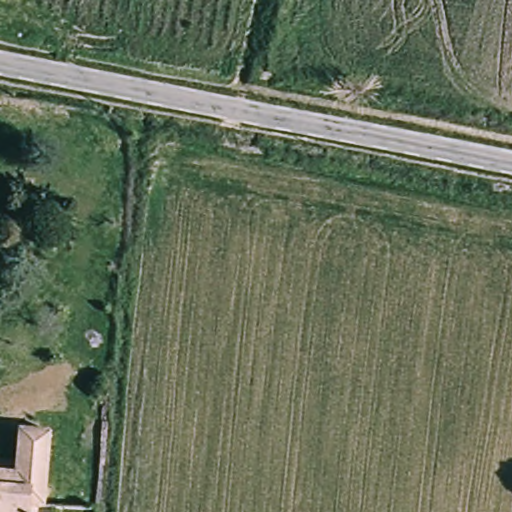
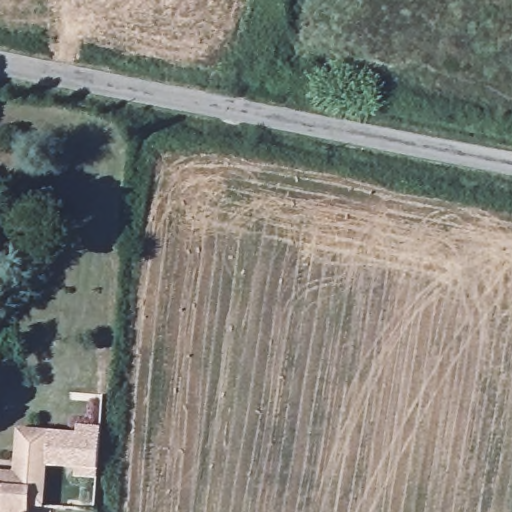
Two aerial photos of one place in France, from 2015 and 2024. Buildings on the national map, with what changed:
new [(76,433),(77,425),(101,427),(100,437),(98,470),(98,480),(75,478),(75,468),(45,468),(49,429),(76,433)]
unchanged [(0,467),(15,468),(19,427),(49,429),(42,503),(28,502),(27,512),(0,512),(0,467)]

